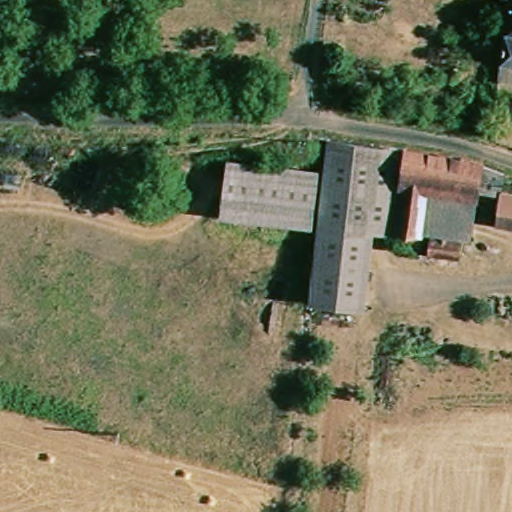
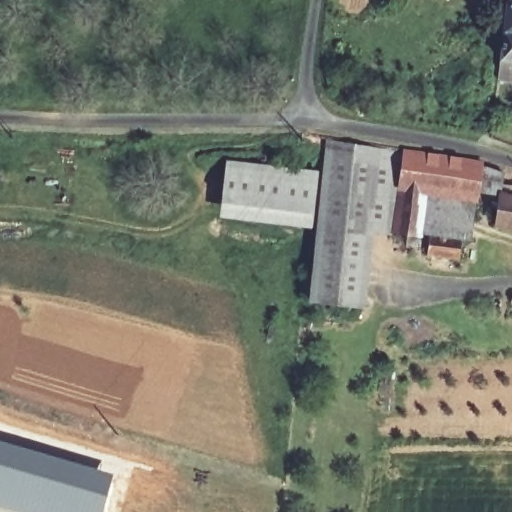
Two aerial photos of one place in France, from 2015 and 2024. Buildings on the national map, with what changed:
unchanged [(512,16),(512,61),(507,61),(512,16)]
unchanged [(507,61),(512,61),(512,81),(505,81),(507,61)]
unchanged [(408,157),(397,237),(380,236),(372,311),(315,305),(332,144),(408,157)]
unchanged [(491,171),(512,177),(512,186),(500,184),(500,193),(491,192),(487,237),(462,235),(459,257),(437,255),(439,232),(430,231),(428,242),(397,237),(408,157),(491,171)]
unchanged [(318,175),(315,216),(230,205),(233,165),(318,175)]
unchanged [(510,192),(512,193),(512,223),(505,222),(510,192)]
new [(113,472),(102,512),(17,512),(0,507),(0,439),(113,472)]

